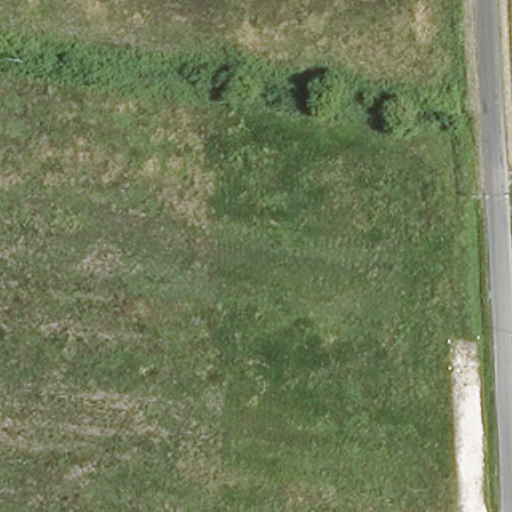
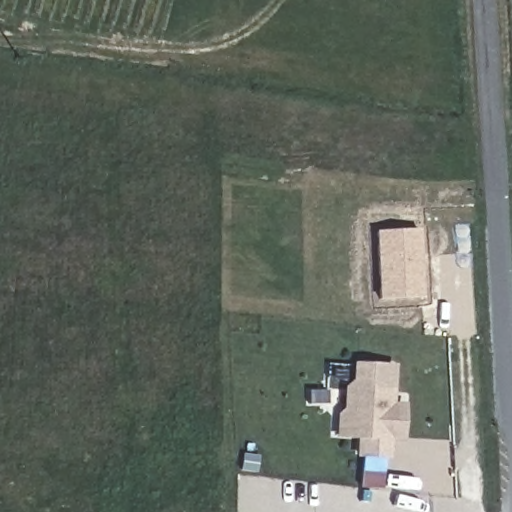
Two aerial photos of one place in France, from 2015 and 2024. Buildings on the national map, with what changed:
new [(418,234),(421,303),(379,304),(376,236),(418,234)]
new [(340,407),(341,386),(349,379),(350,363),(388,364),(386,404),(398,404),(396,436),(384,436),(383,454),(353,452),(354,435),(346,434),(333,434),(334,412),(340,407)]

